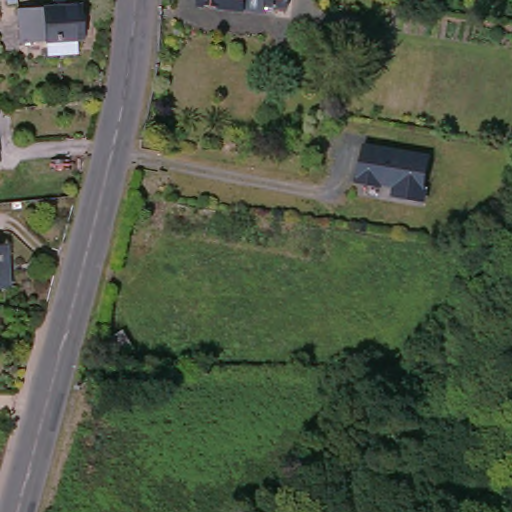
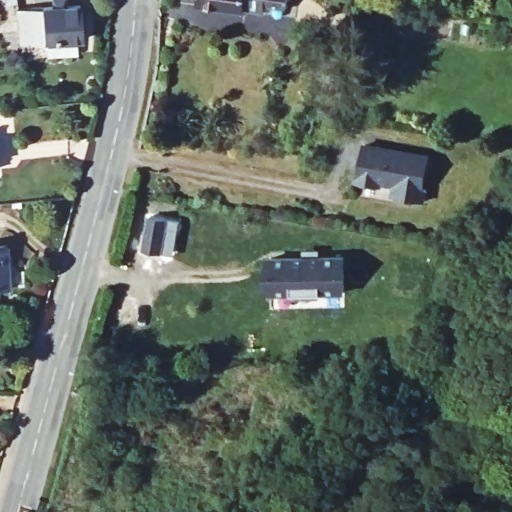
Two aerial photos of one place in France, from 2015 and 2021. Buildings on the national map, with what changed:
unchanged [(85,40),(79,41),(81,57),(51,60),(51,43),(24,47),(23,29),(36,28),(35,9),(56,6),(56,0),(68,0),(69,5),(83,5),(85,40)]
unchanged [(288,14),(199,2),(200,0),(290,0),(288,14)]
unchanged [(358,143),(426,155),(419,200),(389,194),(391,182),(376,179),(375,184),(352,180),(358,143)]
new [(163,256),(146,253),(152,219),(181,224),(180,234),(176,258),(163,256)]
unchanged [(0,291),(0,247),(10,247),(9,291),(0,291)]
new [(346,254),(347,293),(271,296),(269,254),(346,254)]

